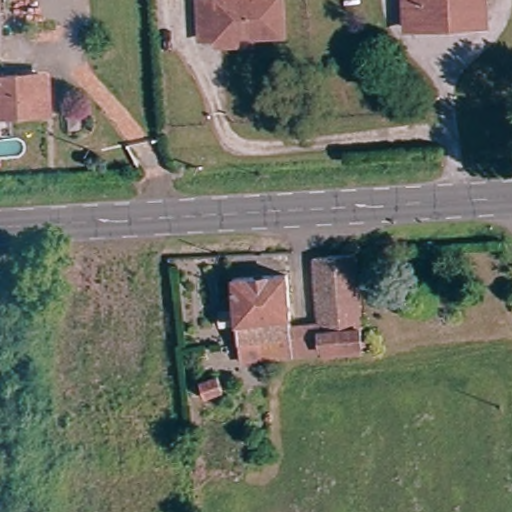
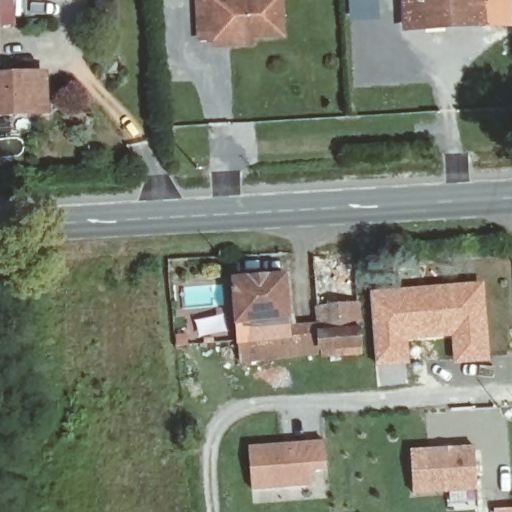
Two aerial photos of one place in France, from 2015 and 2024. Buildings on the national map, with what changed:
unchanged [(217,50),(216,40),(201,41),(200,34),(198,0),(282,0),(285,36),(247,39),(247,48),(217,50)]
unchanged [(409,30),(407,0),(486,0),(488,27),(409,30)]
unchanged [(44,79),(51,80),(50,110),(0,113),(0,72),(42,72),(44,79)]
unchanged [(361,255),(367,353),(245,359),(244,341),(240,334),(239,280),(292,277),(297,327),(328,325),(324,258),(361,255)]
new [(485,281),(491,363),(452,365),(451,338),(408,342),(410,364),(407,365),(408,384),(378,387),(369,290),(485,281)]
unchanged [(194,376),(210,373),(215,397),(199,400),(194,376)]
new [(325,440),(327,471),(312,472),(313,486),(252,492),(250,446),(325,440)]
new [(476,446),(478,490),(413,495),(410,450),(476,446)]

